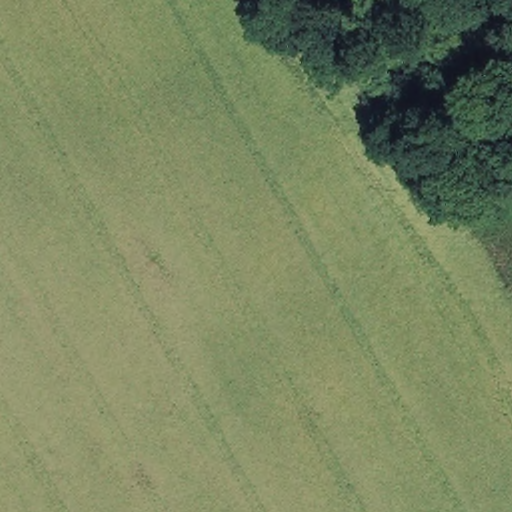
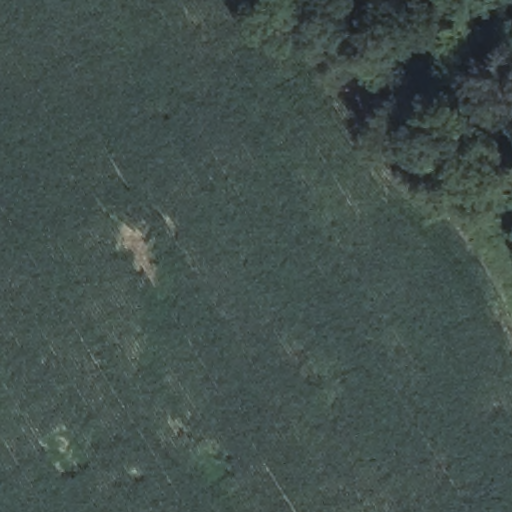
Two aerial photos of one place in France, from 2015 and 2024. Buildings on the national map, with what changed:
[]

